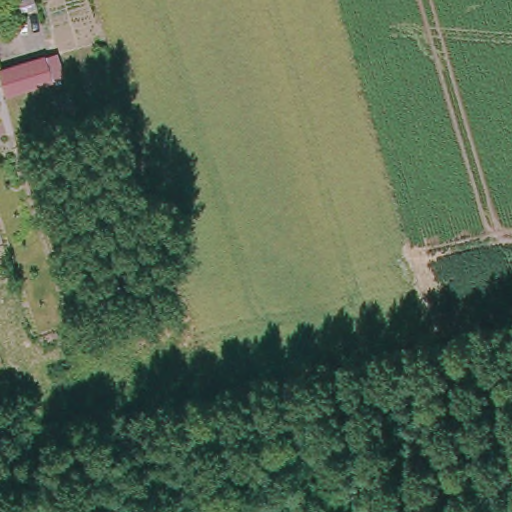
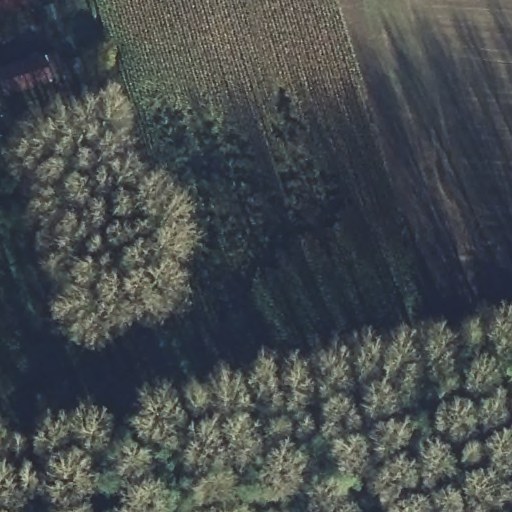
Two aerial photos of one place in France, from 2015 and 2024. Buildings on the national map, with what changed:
unchanged [(66,81),(3,100),(0,84),(0,71),(59,56),(66,81)]

